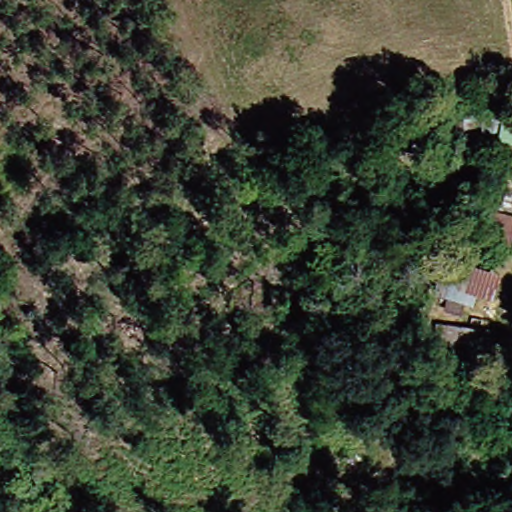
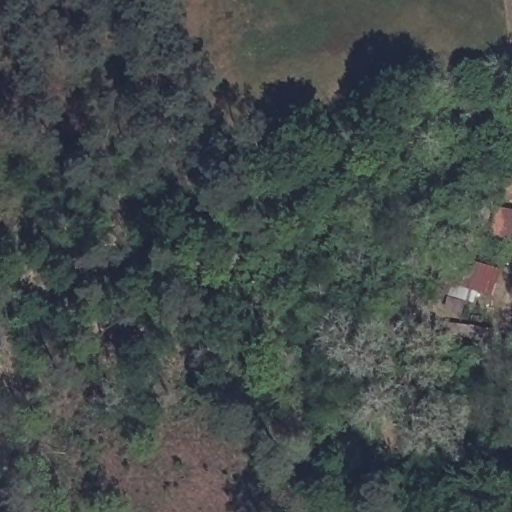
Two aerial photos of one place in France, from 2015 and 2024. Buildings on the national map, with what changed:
unchanged [(512,241),(497,237),(502,207),(512,209),(512,241)]
unchanged [(500,296),(482,290),(479,303),(439,291),(450,255),(482,263),(505,270),(500,296)]
unchanged [(497,330),(494,346),(440,338),(442,323),(497,330)]

